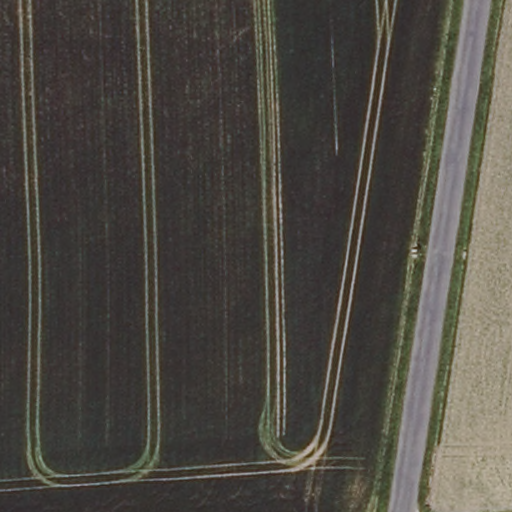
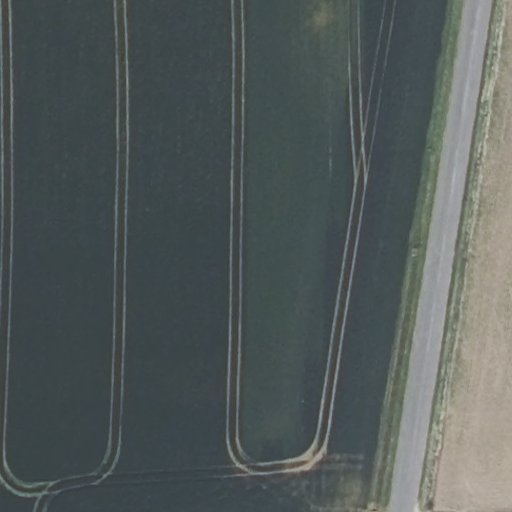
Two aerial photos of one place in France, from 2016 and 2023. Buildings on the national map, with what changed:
[]

